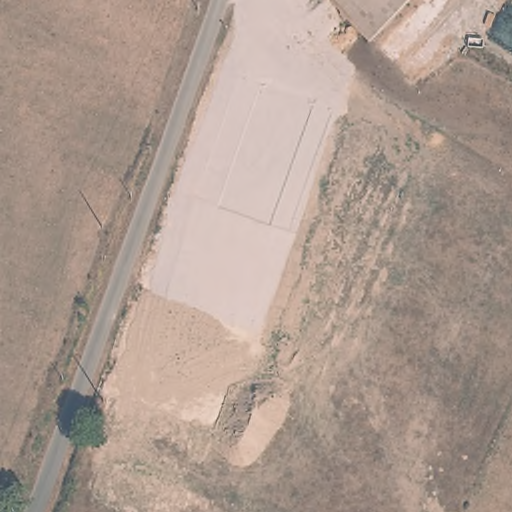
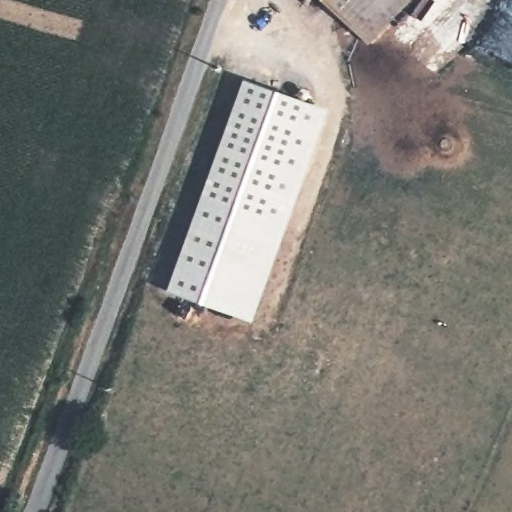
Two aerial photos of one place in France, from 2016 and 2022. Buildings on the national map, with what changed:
unchanged [(325,0),(357,0),(342,16),(325,0)]
unchanged [(342,16),(357,0),(410,0),(370,43),(342,16)]
new [(245,79),(329,111),(255,322),(167,290),(245,79)]

